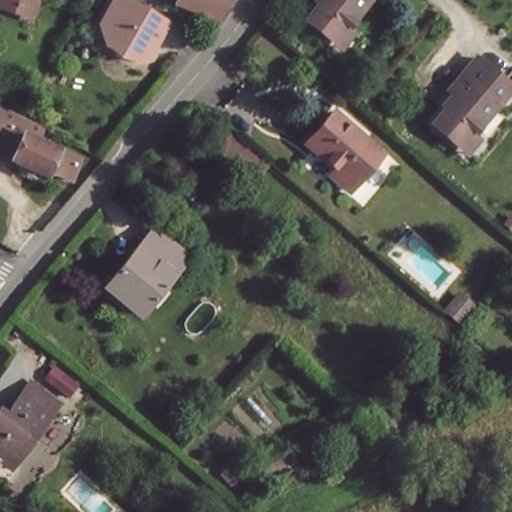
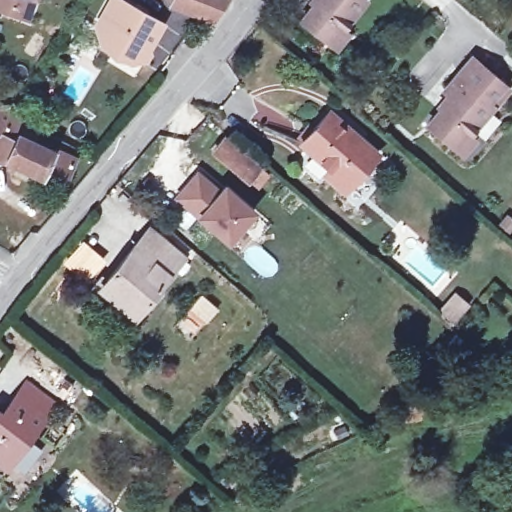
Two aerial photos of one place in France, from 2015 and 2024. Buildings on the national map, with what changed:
unchanged [(0,6),(0,0),(39,0),(33,17),(0,6)]
unchanged [(166,21),(147,52),(140,55),(129,59),(111,49),(103,40),(97,23),(110,0),(128,0),(166,21)]
unchanged [(229,17),(221,14),(210,9),(209,14),(184,3),(184,1),(181,0),(242,0),(229,17)]
unchanged [(335,45),(325,36),(300,15),(312,0),(353,0),(355,1),(338,20),(348,28),(335,45)]
unchanged [(463,150),(452,141),(429,121),(452,94),(444,86),(470,55),(500,81),(489,95),(495,100),(473,127),(479,132),(463,150)]
unchanged [(9,127),(0,128),(0,108),(40,121),(33,138),(9,127)]
unchanged [(381,155),(348,194),(330,178),(336,171),(302,144),(331,111),(381,155)]
unchanged [(67,183),(47,175),(44,182),(0,160),(0,128),(9,127),(33,138),(59,149),(80,156),(67,183)]
unchanged [(258,165),(246,179),(209,148),(222,133),(258,165)]
new [(172,197),(196,170),(219,192),(226,186),(256,214),(227,246),(195,219),(172,197)]
unchanged [(289,186),(278,201),(267,191),(278,177),(289,186)]
unchanged [(183,256),(135,315),(101,286),(149,228),(183,256)]
unchanged [(0,455),(0,414),(20,392),(30,381),(54,403),(44,415),(6,460),(0,455)]

